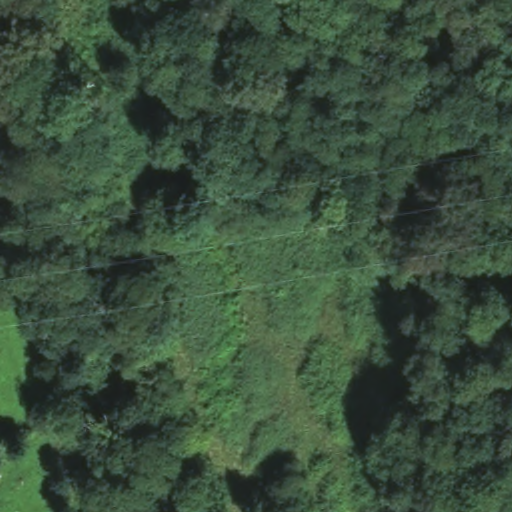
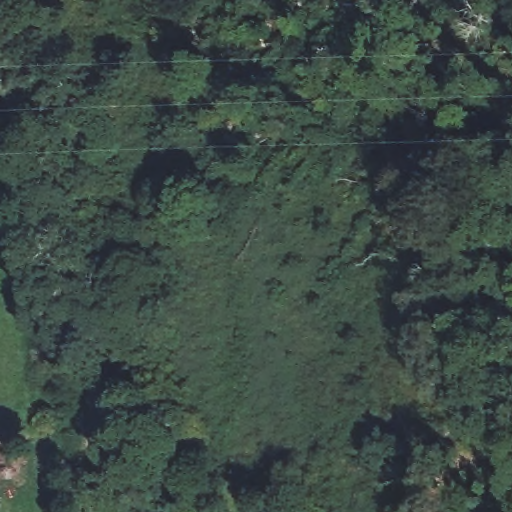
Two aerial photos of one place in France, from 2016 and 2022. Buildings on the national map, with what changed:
unchanged [(270,508),(271,512),(254,512),(270,508)]

